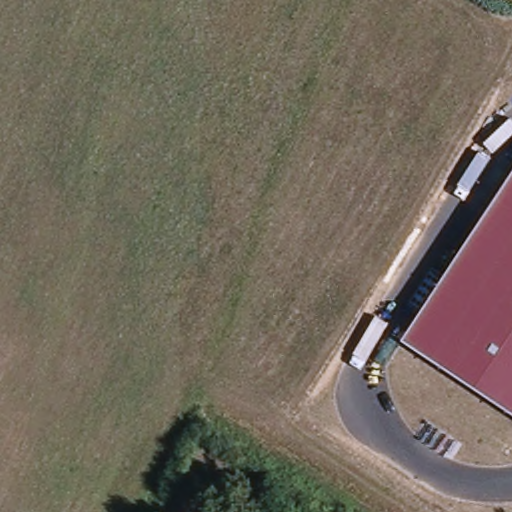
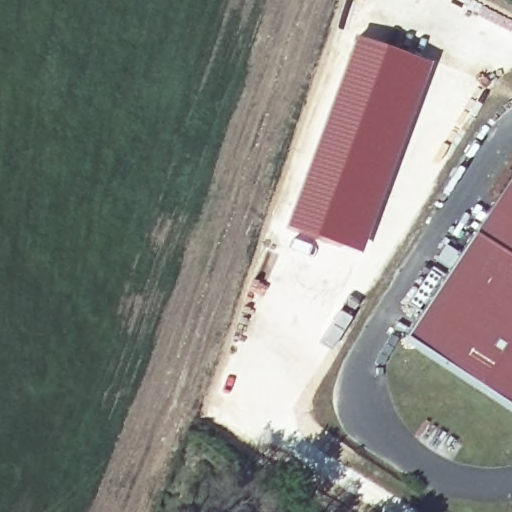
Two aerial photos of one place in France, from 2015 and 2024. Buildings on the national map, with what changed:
new [(353,38),(428,64),(357,255),(282,226),(353,38)]
unchanged [(512,174),(512,410),(404,340),(512,174)]

